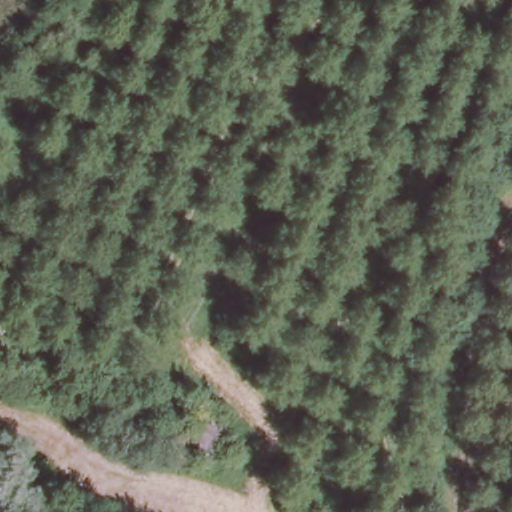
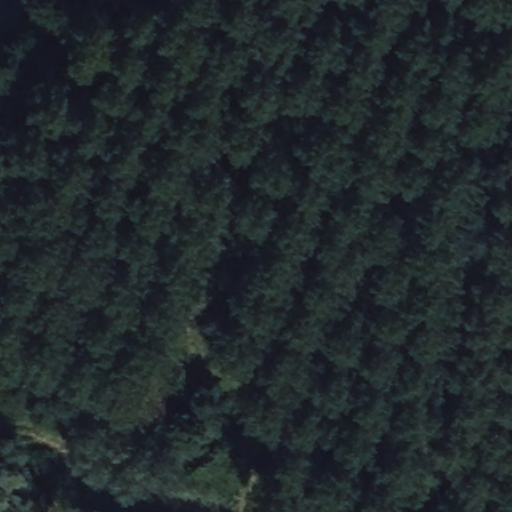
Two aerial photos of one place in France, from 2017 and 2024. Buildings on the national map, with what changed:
unchanged [(205,423),(225,430),(214,456),(194,446),(205,423)]

